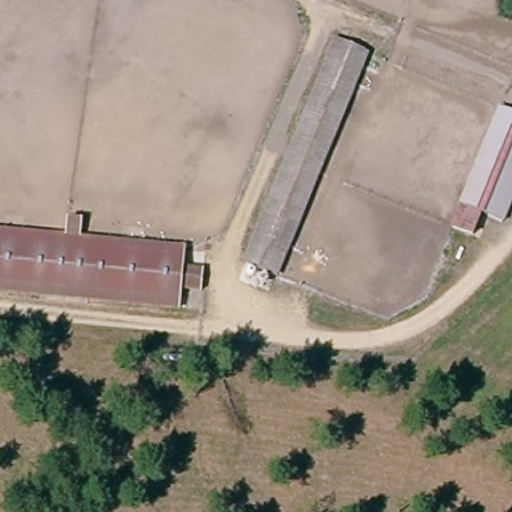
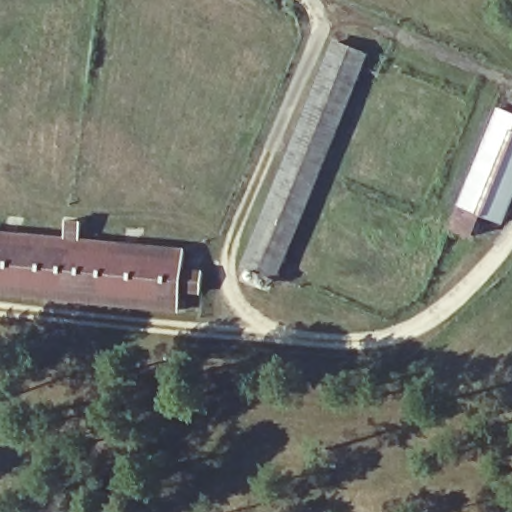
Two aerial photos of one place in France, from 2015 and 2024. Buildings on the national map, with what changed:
unchanged [(336,42),(370,55),(276,274),(240,263),(336,42)]
unchanged [(506,108),(512,110),(512,199),(499,227),(460,210),(506,108)]
unchanged [(70,210),(88,212),(86,226),(189,239),(186,257),(207,260),(204,284),(202,304),(0,281),(0,215),(68,223),(70,210)]

